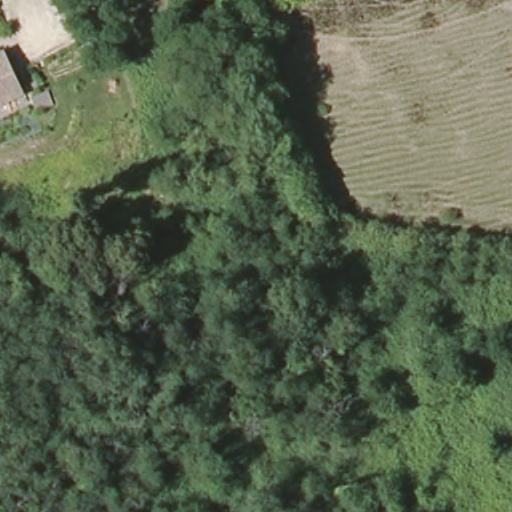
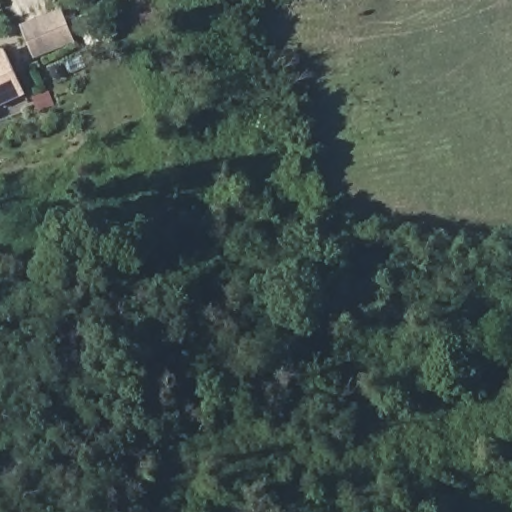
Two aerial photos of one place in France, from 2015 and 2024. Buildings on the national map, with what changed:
new [(32,58),(19,24),(61,8),(75,41),(32,58)]
unchanged [(7,51),(26,93),(0,105),(0,55),(7,51)]

